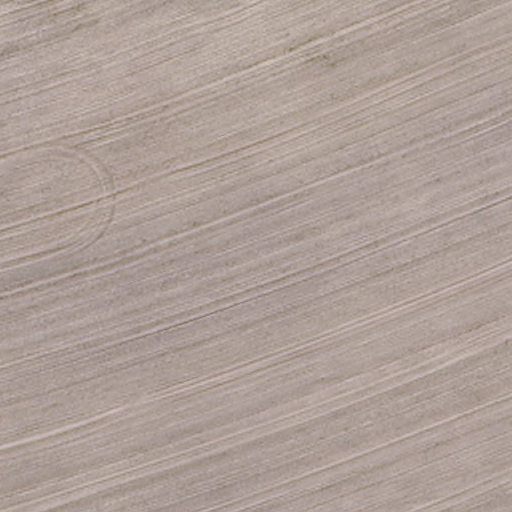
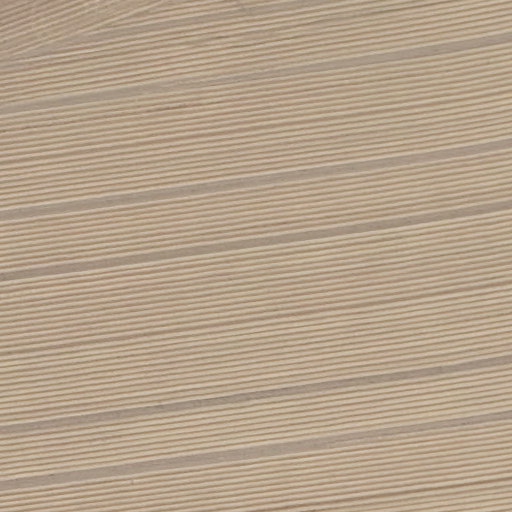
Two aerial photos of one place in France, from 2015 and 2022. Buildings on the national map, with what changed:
[]

